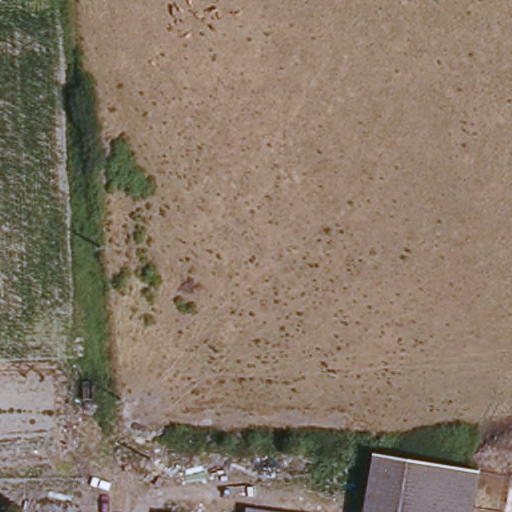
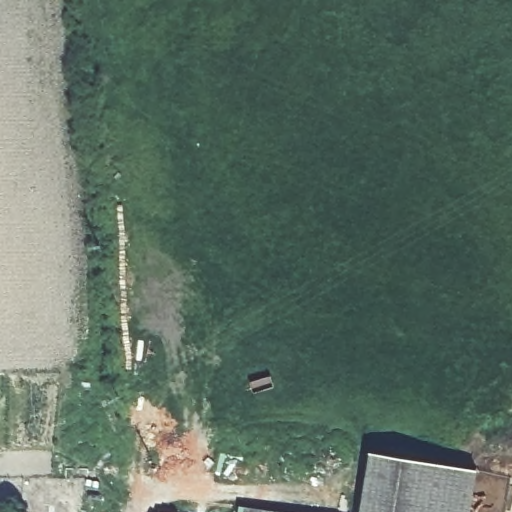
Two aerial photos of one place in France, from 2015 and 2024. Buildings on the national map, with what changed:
unchanged [(480,474),(474,512),(364,512),(372,457),(480,474)]
unchanged [(270,512),(244,512),(244,509),(270,512)]

